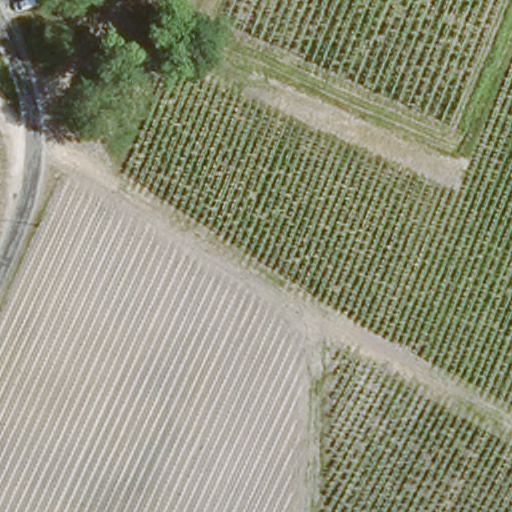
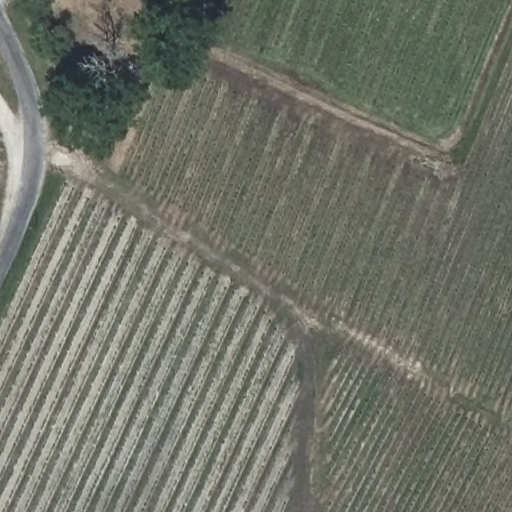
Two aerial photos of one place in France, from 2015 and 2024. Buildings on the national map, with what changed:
[]

